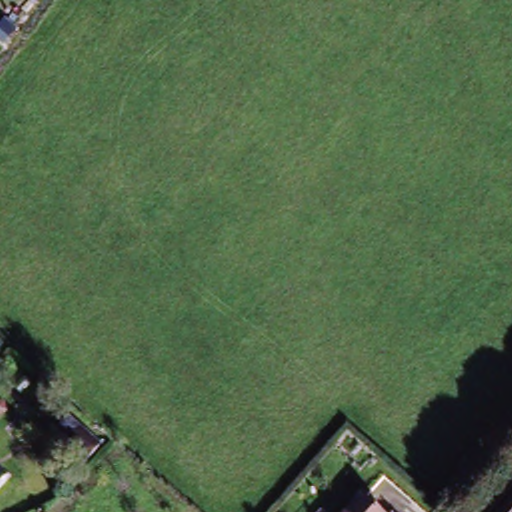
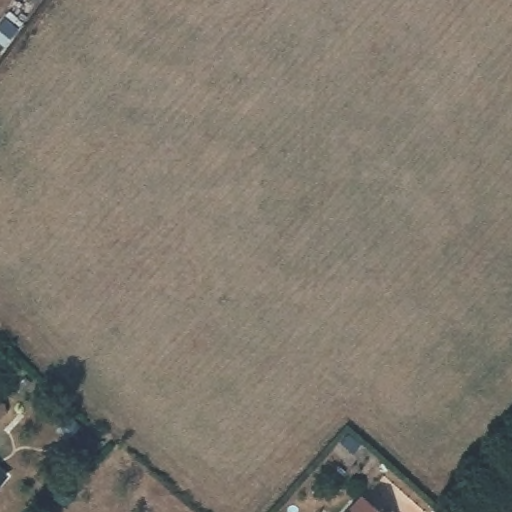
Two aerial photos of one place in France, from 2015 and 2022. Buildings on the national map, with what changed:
unchanged [(0,487),(0,468),(9,476),(0,487)]
unchanged [(497,512),(512,495),(512,512),(497,512)]
unchanged [(350,512),(359,502),(370,512),(350,512)]

